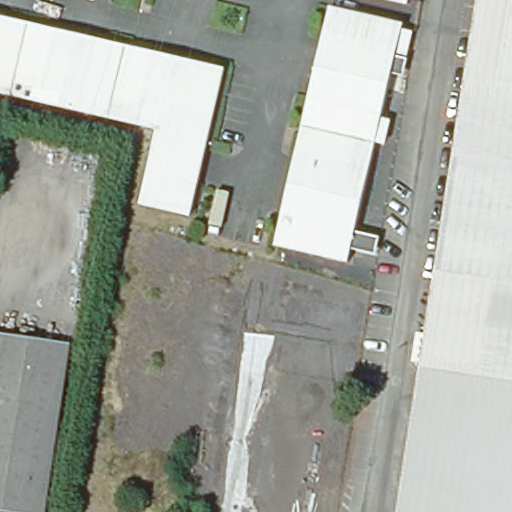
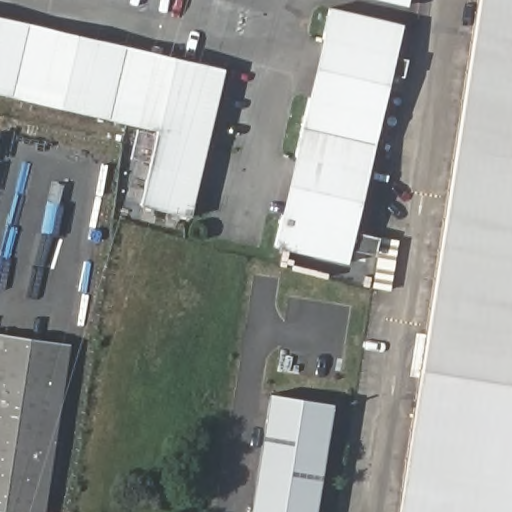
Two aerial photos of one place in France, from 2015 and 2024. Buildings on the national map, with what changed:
unchanged [(407,5),(385,0),(408,0),(407,5)]
unchanged [(394,512),(476,0),(512,0),(512,512),(394,512)]
unchanged [(403,29),(347,267),(275,251),(330,11),(403,29)]
unchanged [(0,94),(0,17),(136,49),(220,69),(186,215),(136,204),(153,128),(124,122),(0,94)]
unchanged [(51,512),(5,512),(0,511),(0,335),(75,347),(51,512)]
new [(253,512),(272,392),(335,403),(317,512),(253,512)]

